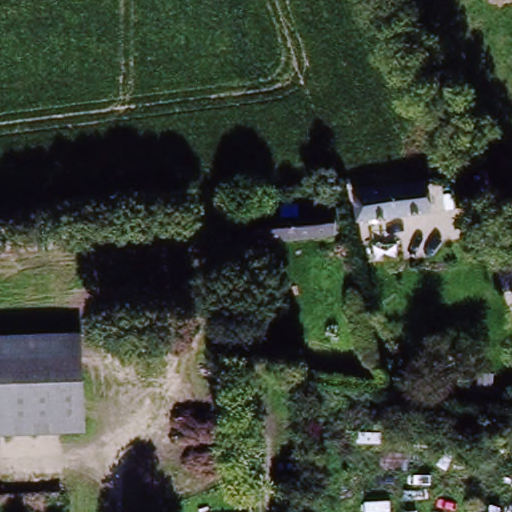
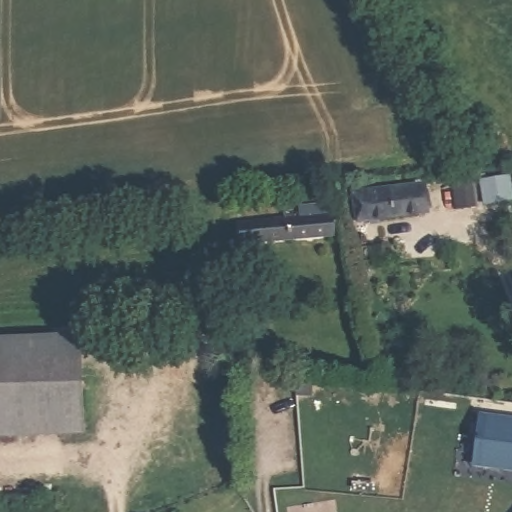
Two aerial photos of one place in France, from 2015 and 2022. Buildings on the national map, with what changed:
unchanged [(424,186),(427,214),(355,222),(351,194),(424,186)]
unchanged [(260,222),(260,218),(293,216),(292,204),(329,202),(330,213),(332,239),(262,246),(240,248),(240,224),(260,222)]
unchanged [(89,437),(0,442),(0,337),(85,334),(89,437)]
new [(475,467),(482,413),(512,417),(512,471),(475,467)]

